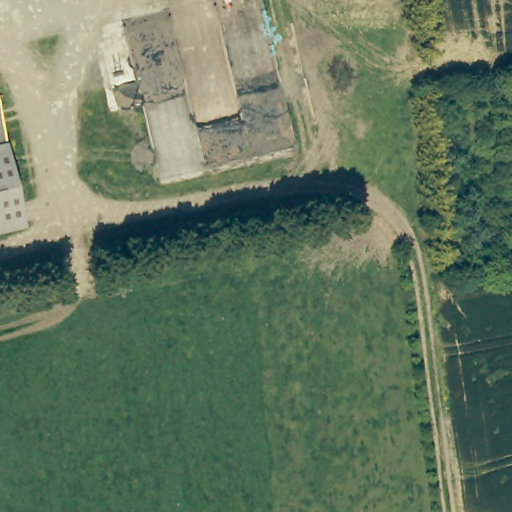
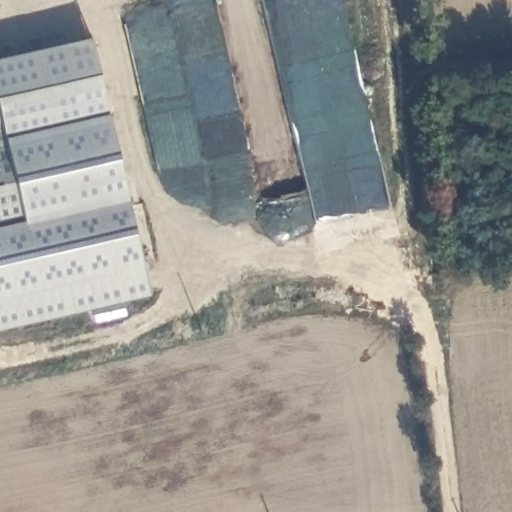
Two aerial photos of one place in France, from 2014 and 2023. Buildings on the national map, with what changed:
new [(0,332),(0,236),(19,232),(10,188),(1,147),(0,145),(0,59),(89,40),(151,297),(0,332)]
unchanged [(0,148),(0,145),(1,147),(0,148)]
unchanged [(10,188),(0,190),(0,148),(1,147),(10,188)]
unchanged [(19,232),(0,236),(0,190),(10,188),(19,232)]

